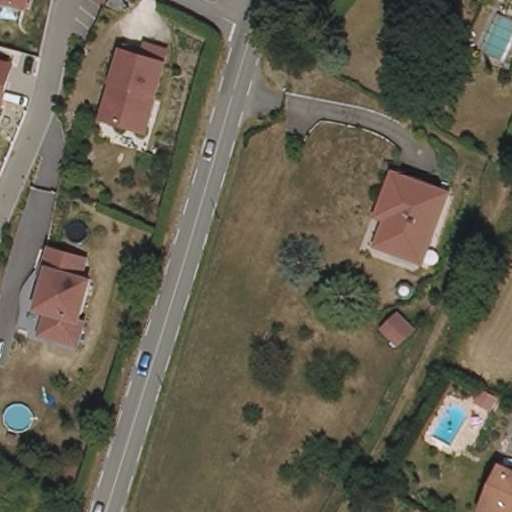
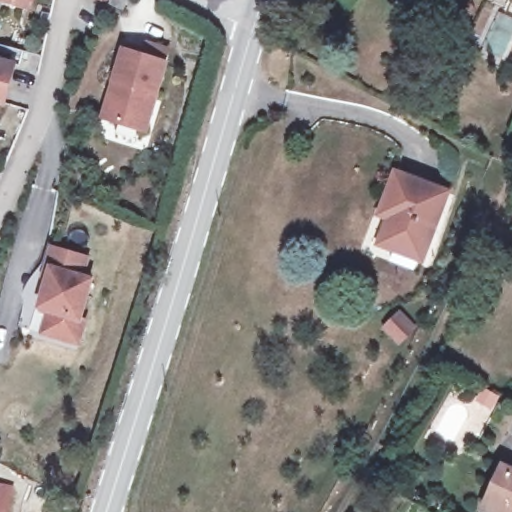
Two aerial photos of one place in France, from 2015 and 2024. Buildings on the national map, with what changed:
unchanged [(30,10),(0,3),(0,0),(33,0),(30,10)]
unchanged [(235,3),(227,2),(224,0),(237,0),(235,3)]
unchanged [(115,80),(126,48),(169,61),(146,129),(111,119),(103,116),(115,80)]
unchanged [(15,63),(4,107),(0,106),(0,59),(15,63)]
unchanged [(449,195),(415,259),(378,239),(394,212),(384,207),(405,170),(449,195)]
unchanged [(48,318),(49,314),(40,311),(49,285),(40,282),(45,269),(52,247),(90,258),(83,278),(92,281),(80,320),(87,322),(79,346),(57,339),(42,335),(48,318)]
unchanged [(512,468),(512,512),(488,512),(487,511),(497,491),(510,466),(512,468)]
new [(14,485),(9,512),(0,512),(0,483),(14,485)]

